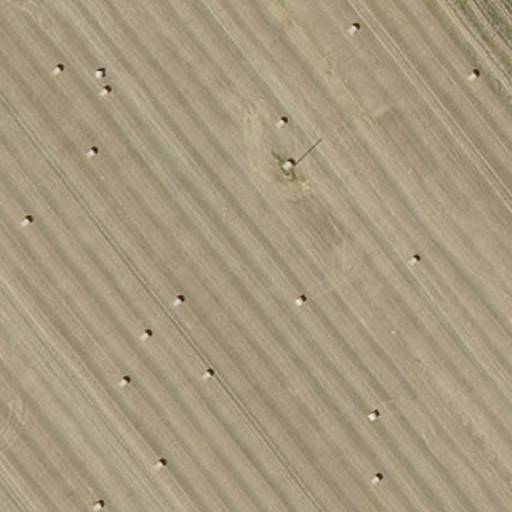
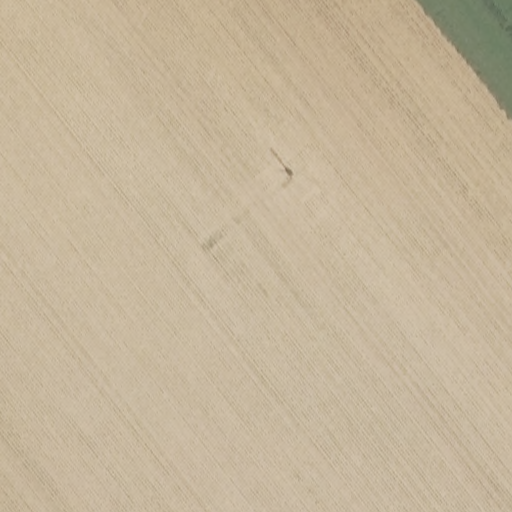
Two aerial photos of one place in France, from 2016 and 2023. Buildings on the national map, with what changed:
[]

